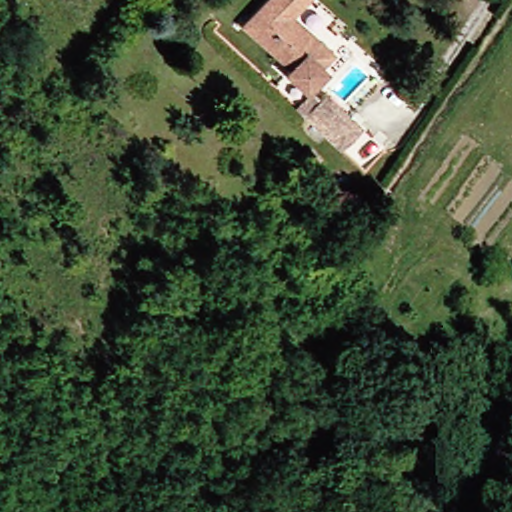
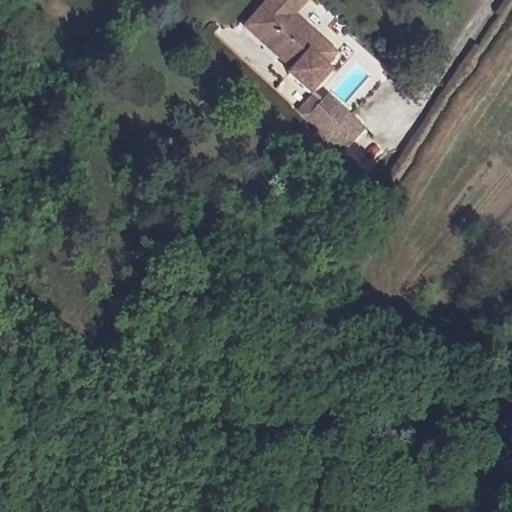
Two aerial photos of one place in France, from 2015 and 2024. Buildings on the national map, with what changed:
unchanged [(328,57),(318,68),(326,75),(307,96),(288,80),(295,72),(244,27),(267,0),(307,0),(288,22),(306,38),(328,57)]
unchanged [(307,121),(310,118),(325,100),(386,154),(368,175),(307,121)]

